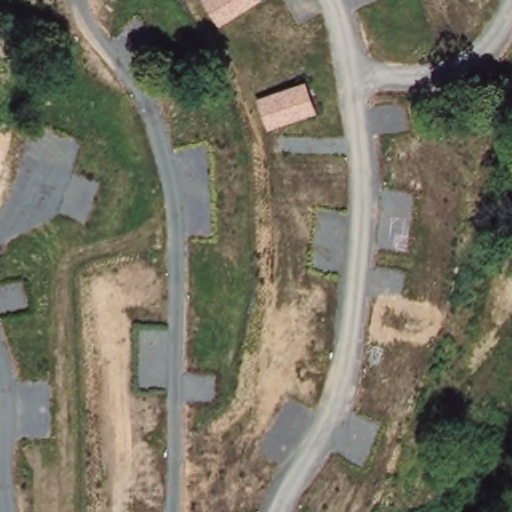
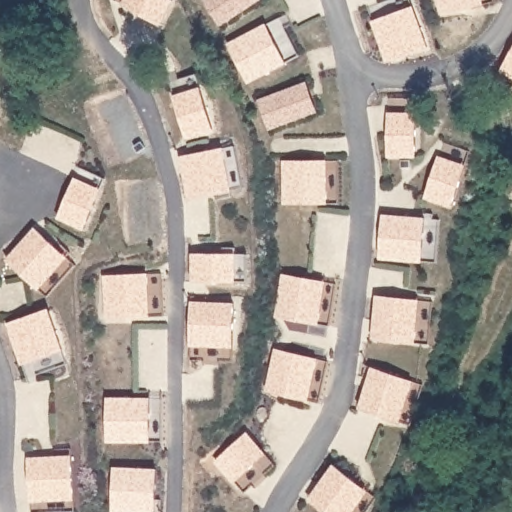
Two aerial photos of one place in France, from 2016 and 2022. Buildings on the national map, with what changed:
new [(160,25),(121,6),(124,0),(172,0),(174,1),(160,25)]
unchanged [(219,27),(203,0),(262,0),(219,27)]
new [(440,13),(437,0),(481,0),(482,4),(440,13)]
new [(246,84),(226,45),(266,24),(285,62),(246,84)]
new [(512,50),(512,78),(500,71),(512,50)]
unchanged [(318,115),(268,131),(256,101),(307,82),(318,115)]
new [(416,156),(388,156),(388,111),(417,111),(416,156)]
new [(189,197),(180,156),(224,147),(232,190),(189,197)]
new [(453,206),(426,199),(440,154),(467,163),(453,206)]
new [(282,204),(281,161),(325,160),(327,204),(282,204)]
new [(423,261),(381,258),(384,214),(426,216),(423,261)]
new [(38,290),(6,259),(37,225),(69,258),(38,290)]
new [(104,318),(102,276),(147,274),(149,317),(104,318)]
new [(317,325),(274,317),(281,274),(325,281),(317,325)]
new [(417,342),(373,338),(377,294),(421,298),(417,342)]
new [(190,345),(191,301),(234,302),(233,346),(190,345)]
new [(306,400),(264,390),(273,350),(317,359),(306,400)]
new [(402,420),(360,407),(373,365),(415,380),(402,420)]
new [(106,441),(105,398),(149,398),(149,442),(106,441)]
new [(230,482),(213,462),(246,432),(264,453),(230,482)]
new [(74,498),(30,500),(27,458),(72,455),(74,498)]
new [(327,512),(309,497),(334,463),(369,490),(353,512),(327,512)]
new [(111,467),(155,470),(154,512),(125,512),(110,511),(111,467)]

